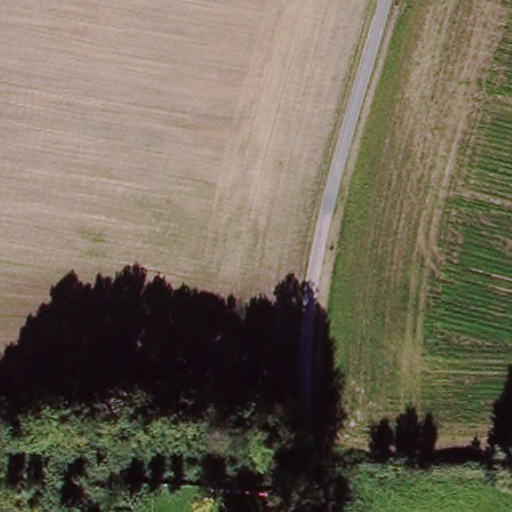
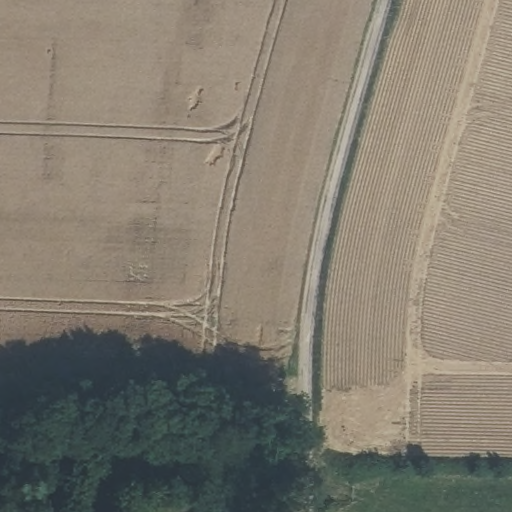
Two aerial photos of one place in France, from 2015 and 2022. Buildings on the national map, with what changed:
[]

